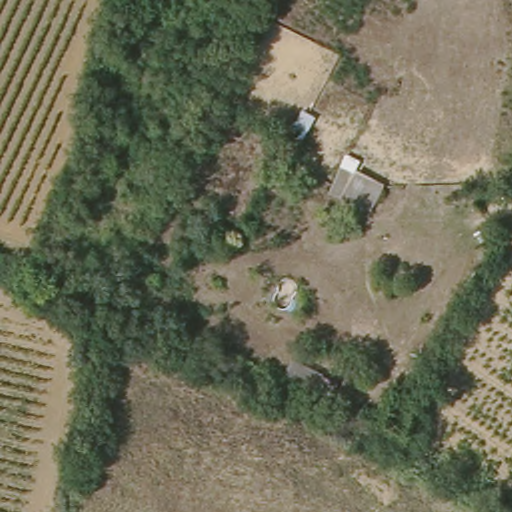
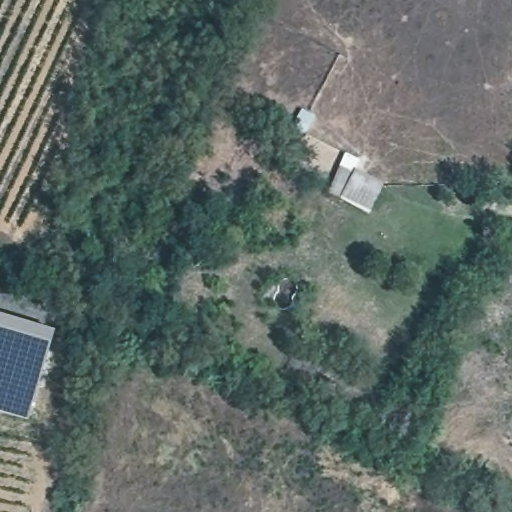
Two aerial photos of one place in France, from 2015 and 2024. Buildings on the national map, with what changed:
unchanged [(373,213),(327,193),(345,154),(360,162),(355,173),(385,185),(373,213)]
new [(27,420),(0,413),(0,314),(55,330),(27,420)]

